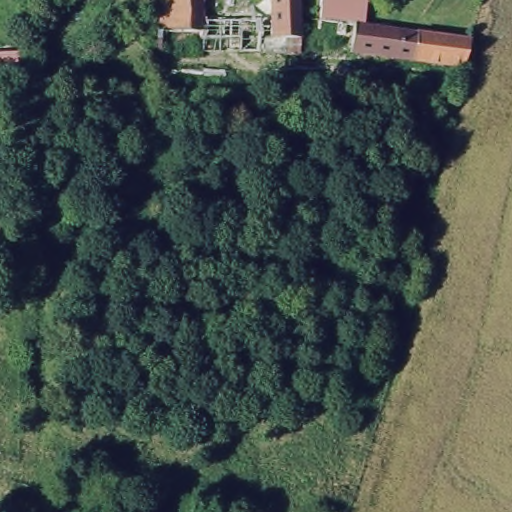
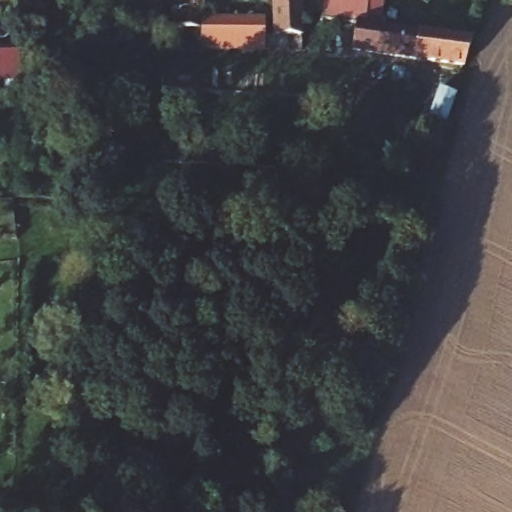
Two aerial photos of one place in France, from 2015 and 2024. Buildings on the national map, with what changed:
unchanged [(158,0),(198,0),(198,16),(200,47),(200,55),(158,55),(158,39),(158,35),(158,0)]
unchanged [(265,0),(300,0),(300,2),(300,10),(300,12),(301,39),(262,38),(262,48),(256,48),(242,48),(200,47),(198,16),(265,17),(265,0)]
unchanged [(350,48),(350,32),(318,29),(320,10),(321,0),(355,0),(352,14),(468,30),(460,64),(413,55),(413,59),(350,48)]
unchanged [(0,54),(17,54),(17,71),(17,87),(0,87),(0,54)]
unchanged [(418,100),(435,104),(440,88),(455,91),(448,121),(432,119),(416,116),(418,100)]

